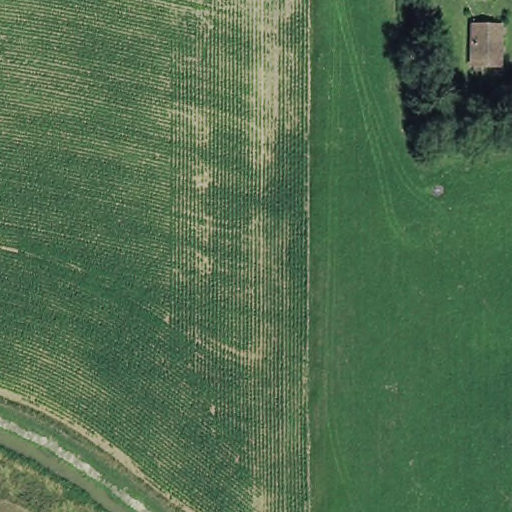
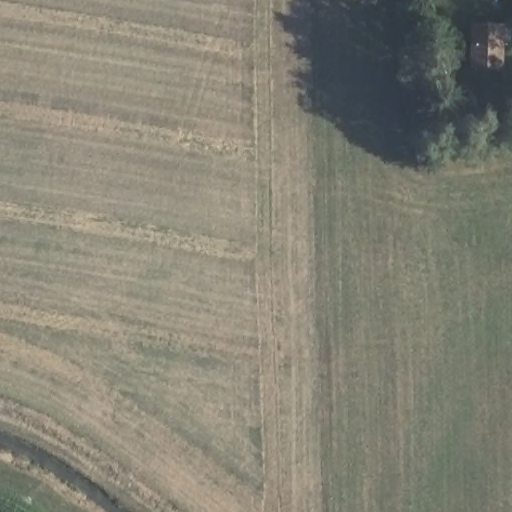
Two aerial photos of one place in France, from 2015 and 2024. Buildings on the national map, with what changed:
unchanged [(497,26),(498,43),(507,43),(507,66),(480,67),(479,27),(497,26)]

